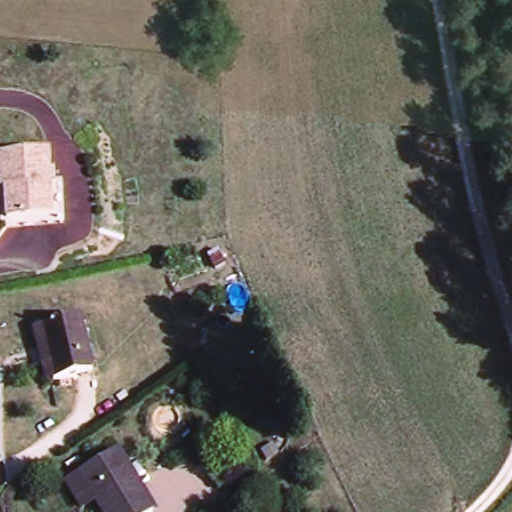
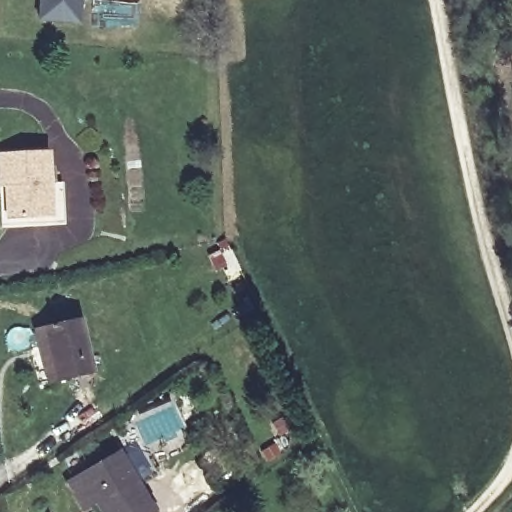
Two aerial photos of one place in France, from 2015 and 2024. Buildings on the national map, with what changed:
new [(37,22),(40,0),(82,0),(79,25),(37,22)]
unchanged [(9,224),(8,218),(6,192),(11,192),(10,182),(0,183),(0,150),(45,149),(48,181),(62,181),(63,221),(9,224)]
unchanged [(91,373),(47,387),(33,333),(76,322),(91,373)]
unchanged [(153,511),(152,512),(102,512),(81,476),(119,455),(153,511)]

